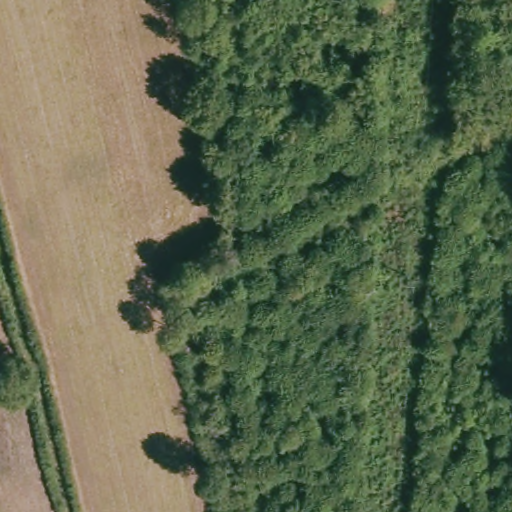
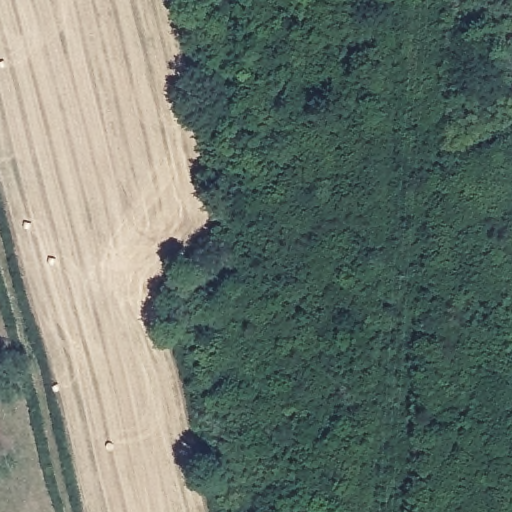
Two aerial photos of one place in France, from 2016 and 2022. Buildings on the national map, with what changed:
[]

